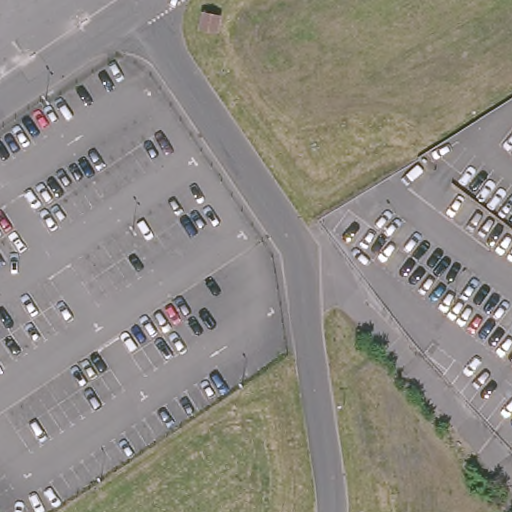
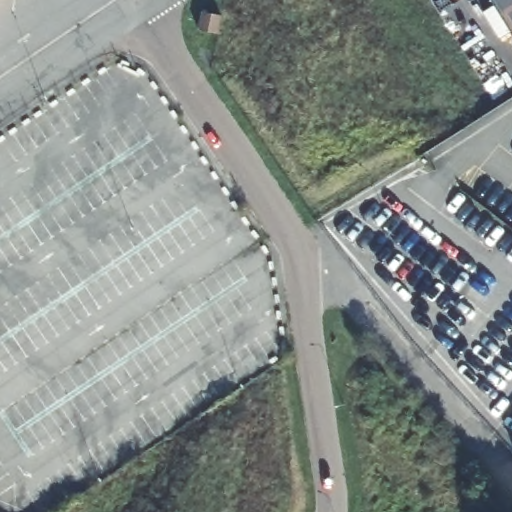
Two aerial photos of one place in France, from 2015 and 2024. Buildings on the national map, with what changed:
new [(512,31),(492,0),(512,0),(512,31)]
unchanged [(212,43),(191,38),(196,20),(216,25),(212,43)]

